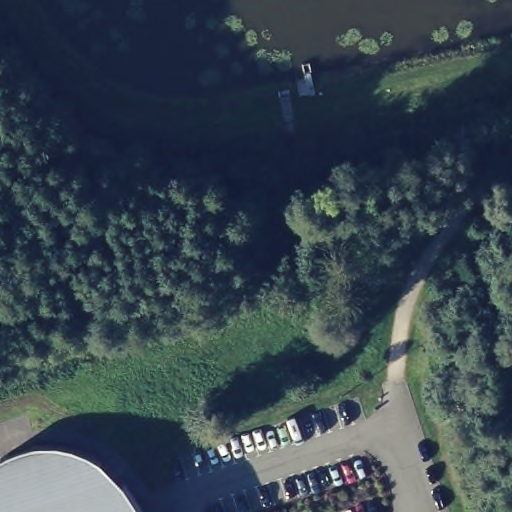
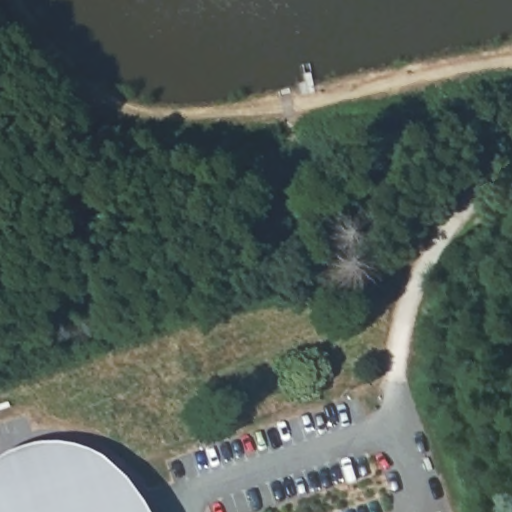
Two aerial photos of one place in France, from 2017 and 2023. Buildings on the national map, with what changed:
unchanged [(0,459),(1,458),(2,458),(3,457),(4,457),(5,457),(6,456),(7,456),(7,455),(9,455),(10,454),(11,454),(12,454),(12,453),(14,453),(15,452),(16,452),(17,452),(17,451),(18,451),(19,451),(20,450),(21,450),(22,450),(23,450),(24,449),(25,449),(26,449),(27,448),(28,448),(29,448),(30,448),(31,447),(32,447),(34,447),(35,447),(35,446),(36,446),(37,446),(38,446),(39,446),(41,446),(44,446),(46,446),(47,446),(49,446),(52,446),(57,446),(58,446),(59,446),(60,446),(60,447),(61,447),(62,447),(63,447),(64,447),(65,447),(66,447),(67,448),(68,448),(69,448),(70,448),(71,448),(72,448),(72,449),(73,449),(74,449),(75,449),(76,449),(77,450),(78,450),(79,450),(80,451),(81,451),(82,451),(82,452),(83,452),(84,452),(85,452),(85,453),(86,453),(87,453),(87,454),(88,454),(89,454),(90,455),(91,455),(92,456),(94,457),(95,457),(96,458),(97,458),(97,459),(98,459),(99,460),(100,460),(101,461),(102,461),(102,462),(103,463),(104,463),(104,464),(105,464),(106,465),(107,466),(108,467),(109,467),(109,468),(110,468),(110,469),(111,469),(111,470),(112,470),(112,471),(113,472),(114,472),(114,473),(115,473),(115,474),(116,474),(116,475),(117,475),(117,476),(117,477),(118,477),(119,478),(120,479),(120,480),(121,480),(121,481),(122,481),(122,482),(123,483),(124,483),(124,484),(125,484),(125,485),(126,486),(127,487),(127,488),(127,489),(128,489),(128,490),(129,490),(129,491),(130,491),(130,492),(131,493),(131,494),(132,494),(132,495),(132,496),(133,497),(134,498),(135,499),(135,500),(136,500),(136,501),(137,502),(137,503),(138,504),(139,504),(139,505),(140,506),(140,507),(141,507),(141,508),(142,509),(142,510),(142,511),(143,511),(143,512),(0,512),(0,459)]

